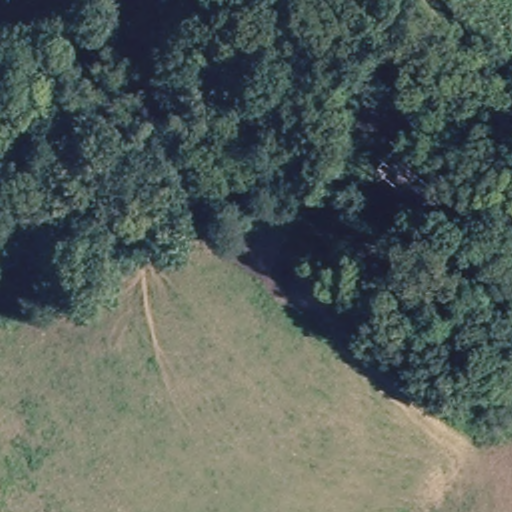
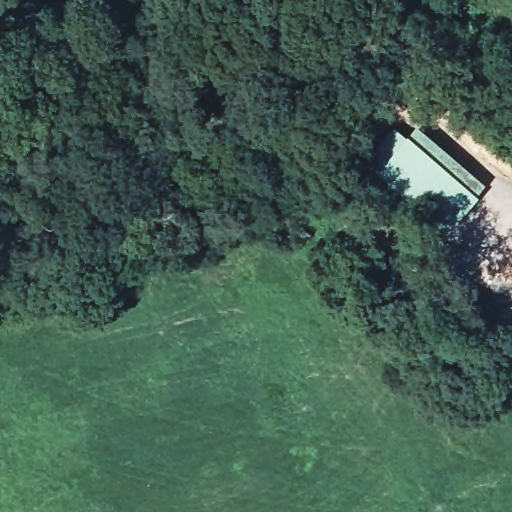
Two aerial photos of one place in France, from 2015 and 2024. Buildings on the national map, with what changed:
new [(393,126),(406,136),(414,127),(484,185),(467,207),(438,237),(413,215),(362,163),(393,126)]

